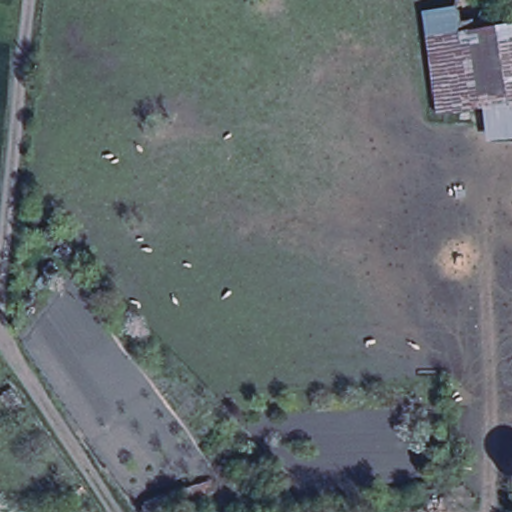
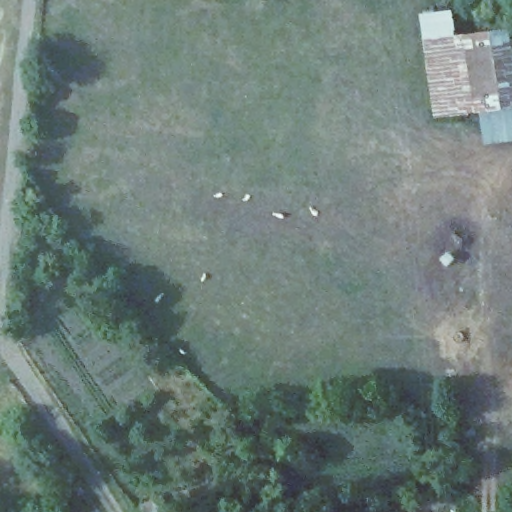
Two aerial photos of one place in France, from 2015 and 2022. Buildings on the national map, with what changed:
unchanged [(454,7),(457,33),(461,34),(472,112),(432,118),(420,12),(454,7)]
unchanged [(472,112),(461,34),(512,26),(512,107),(482,111),(472,112)]
unchanged [(512,107),(512,139),(485,142),(482,111),(512,107)]

